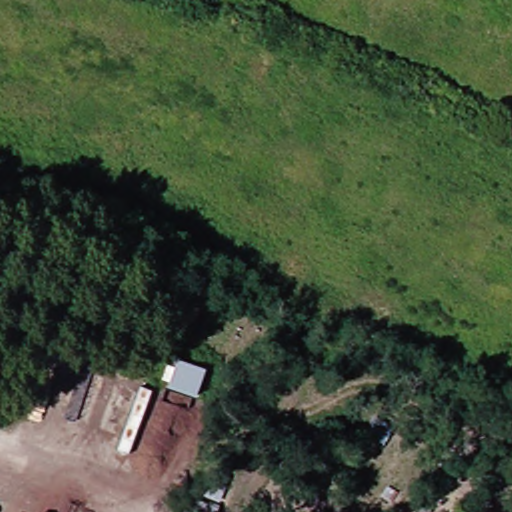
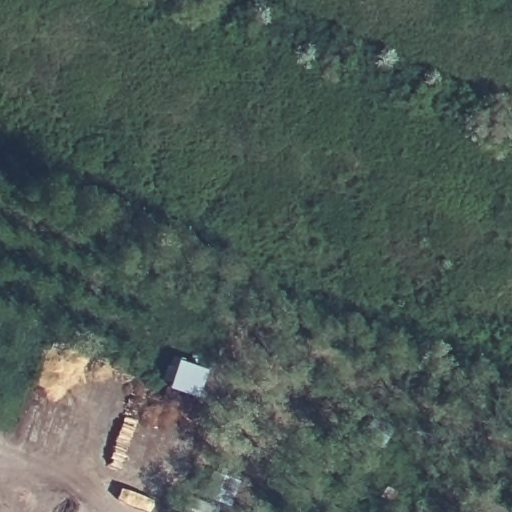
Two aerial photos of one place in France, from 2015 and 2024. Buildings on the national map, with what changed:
unchanged [(189,395),(160,387),(152,384),(164,354),(171,358),(197,367),(189,395)]

